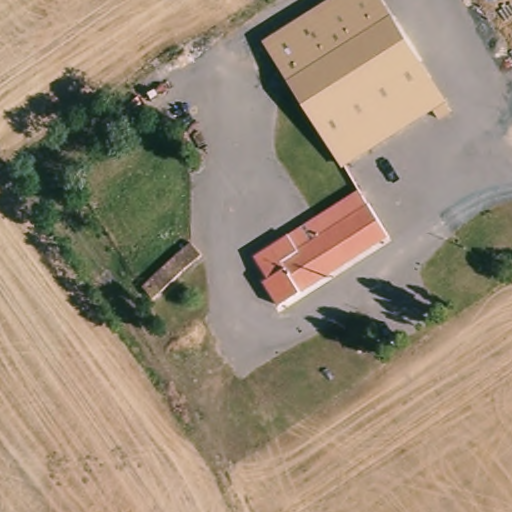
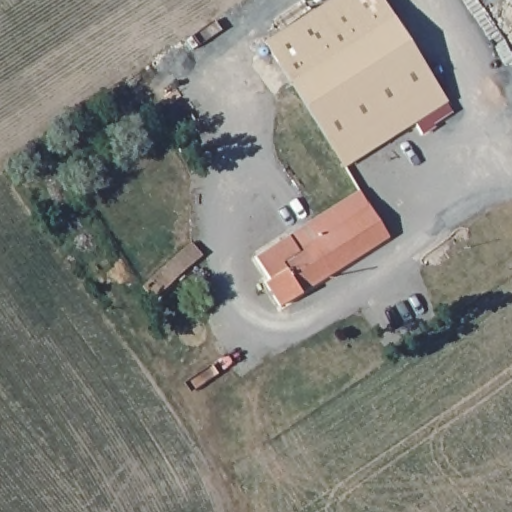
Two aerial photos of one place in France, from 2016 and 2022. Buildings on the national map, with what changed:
unchanged [(256,53),(339,0),(366,0),(436,110),(367,155),(337,175),(256,53)]
unchanged [(327,279),(277,311),(260,287),(264,284),(250,264),(350,195),(367,219),(375,232),(382,243),(327,279)]
unchanged [(194,267),(147,308),(134,294),(181,252),(194,267)]

